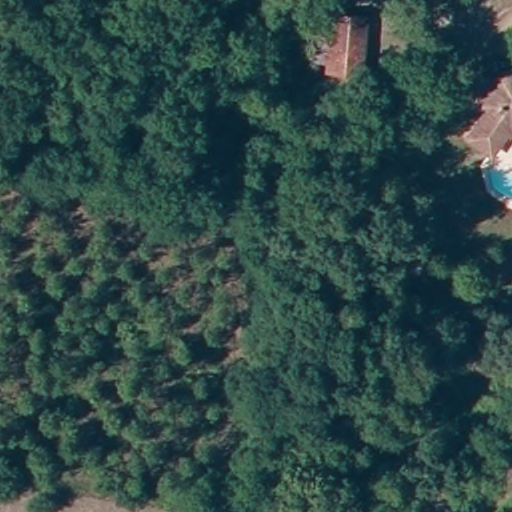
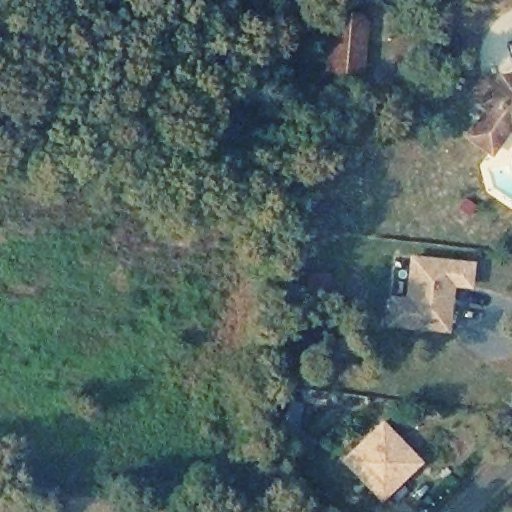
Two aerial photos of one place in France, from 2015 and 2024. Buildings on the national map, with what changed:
unchanged [(336,18),(366,20),(363,72),(332,69),(336,18)]
unchanged [(492,152),(467,135),(487,107),(469,94),(484,73),(499,85),(506,75),(512,74),(512,125),(511,125),(492,152)]
new [(389,295),(402,296),(409,252),(474,260),(471,289),(454,287),(447,333),(385,324),(389,295)]
new [(422,463),(379,503),(340,460),(382,420),(422,463)]

